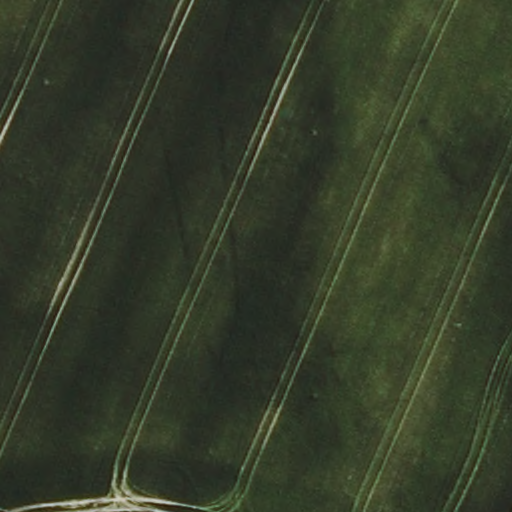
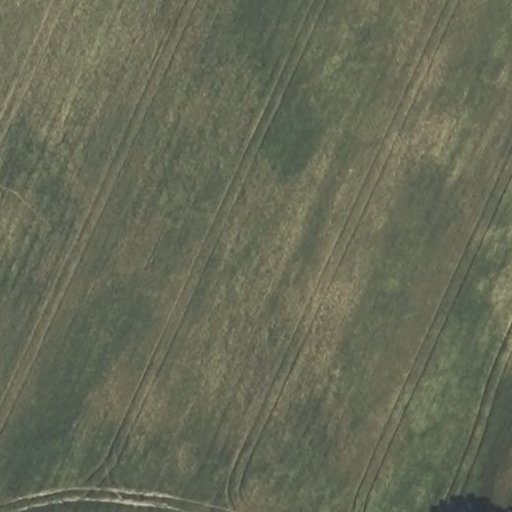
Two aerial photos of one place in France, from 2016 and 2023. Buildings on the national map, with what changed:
[]

